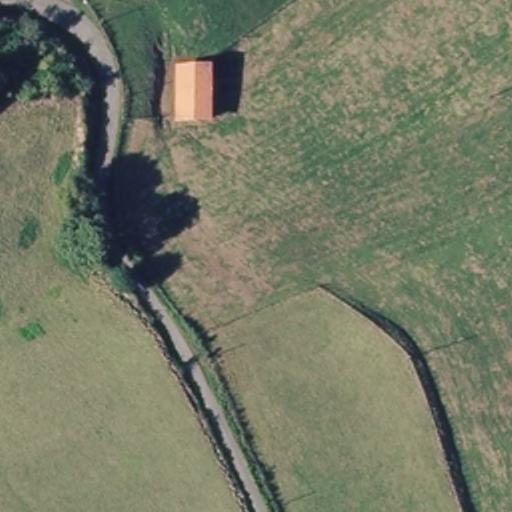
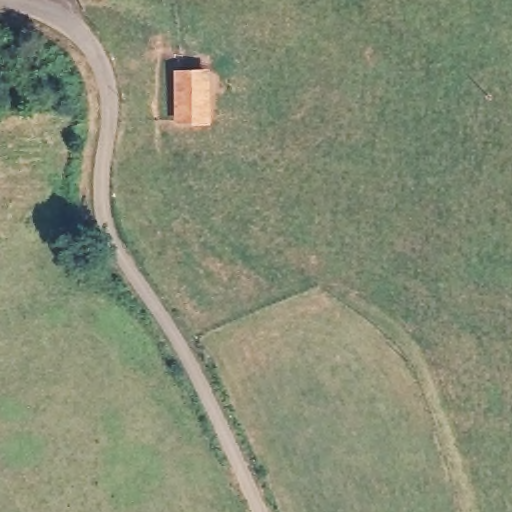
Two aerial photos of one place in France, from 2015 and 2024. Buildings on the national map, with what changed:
unchanged [(210,79),(210,127),(182,129),(181,80),(210,79)]

